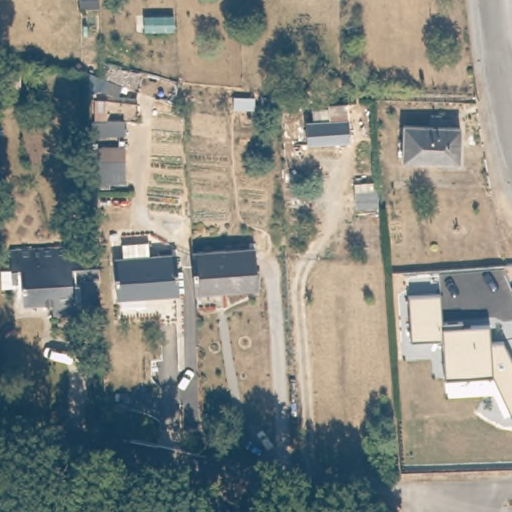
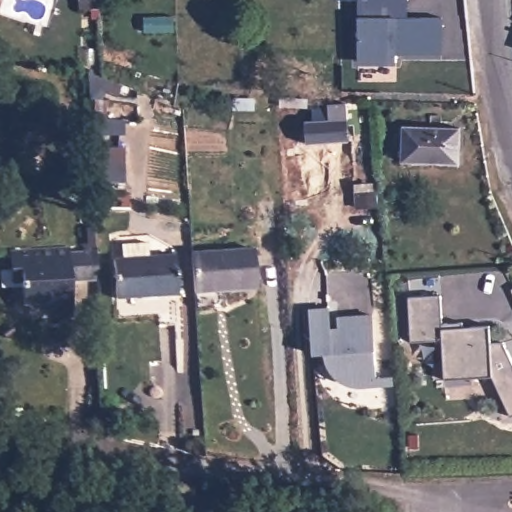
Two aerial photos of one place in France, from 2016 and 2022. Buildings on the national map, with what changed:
new [(445,18),(444,54),(396,54),(396,65),(358,65),(359,0),(408,0),(408,17),(445,18)]
demolished [(173,76),(131,74),(131,61),(173,63),(173,76)]
unchanged [(0,76),(18,76),(18,91),(0,91),(0,84),(0,76)]
unchanged [(278,111),(277,103),(304,105),(304,112),(278,111)]
unchanged [(344,146),(303,150),(302,128),(310,128),(309,118),(323,116),(324,111),(341,110),(344,146)]
unchanged [(459,163),(403,161),(404,128),(459,129),(459,163)]
unchanged [(155,258),(183,257),(185,295),(123,298),(121,261),(128,261),(128,246),(154,244),(155,258)]
unchanged [(85,253),(85,248),(99,247),(101,279),(74,280),(76,315),(54,315),(53,302),(25,303),(25,281),(13,281),(13,269),(12,250),(73,248),(73,253),(85,253)]
unchanged [(193,253),(255,250),(258,290),(196,294),(193,253)]
unchanged [(448,378),(445,340),(413,341),(410,297),(440,296),(443,328),(491,328),(492,344),(504,342),(512,359),(512,414),(493,376),(448,378)]
new [(394,384),(377,385),(362,387),(351,385),(341,381),(333,374),(328,364),(325,354),(312,354),(308,310),(329,309),(330,330),(338,329),(338,318),(372,316),(377,377),(394,376),(394,384)]
demolished [(502,331),(512,328),(512,354),(509,355),(502,331)]
demolished [(300,475),(302,453),(331,454),(329,482),(300,481),(300,475)]

